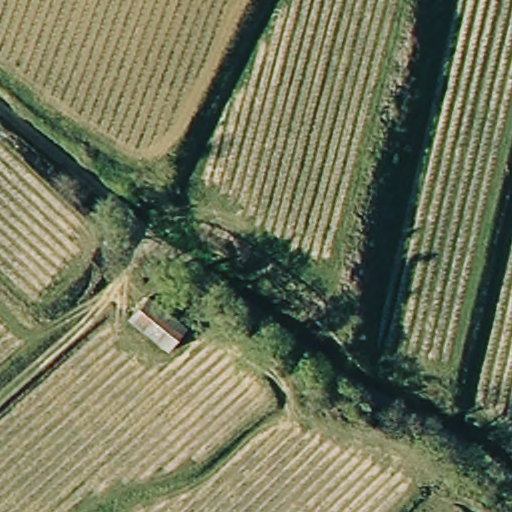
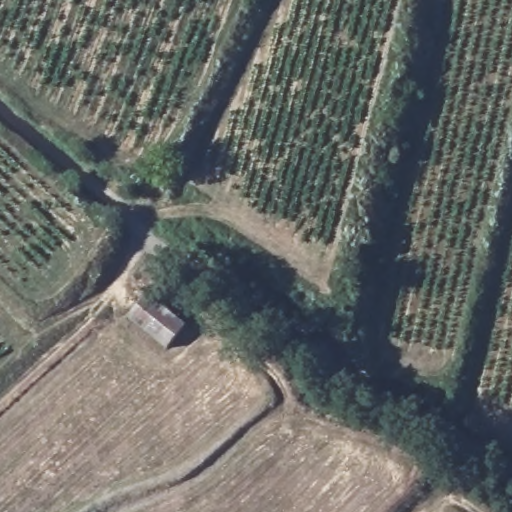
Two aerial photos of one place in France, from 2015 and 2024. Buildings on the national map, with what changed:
unchanged [(186,324),(164,350),(132,319),(156,295),(186,324)]

